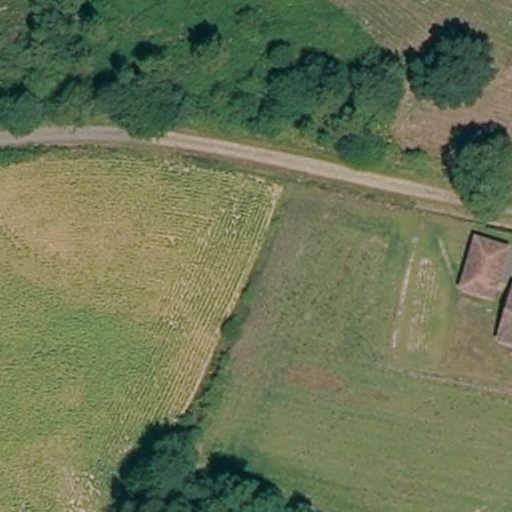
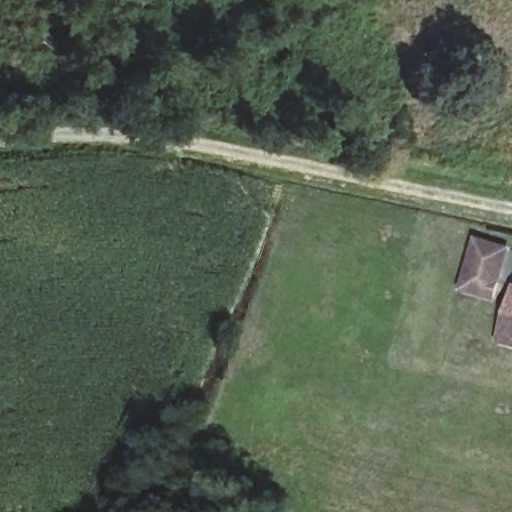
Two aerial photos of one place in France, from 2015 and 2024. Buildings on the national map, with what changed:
unchanged [(490,300),(461,291),(476,244),(506,252),(490,300)]
unchanged [(499,340),(512,299),(512,344),(499,340)]

